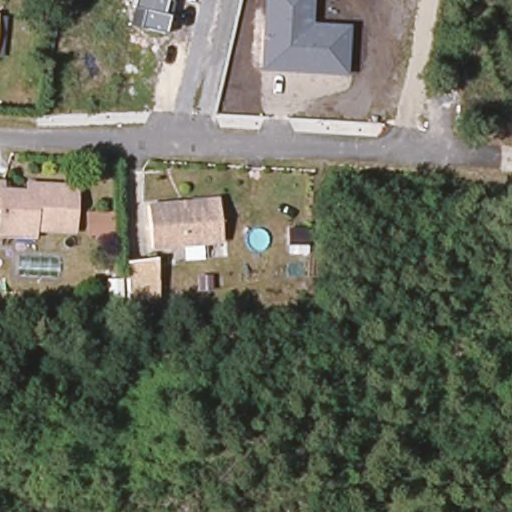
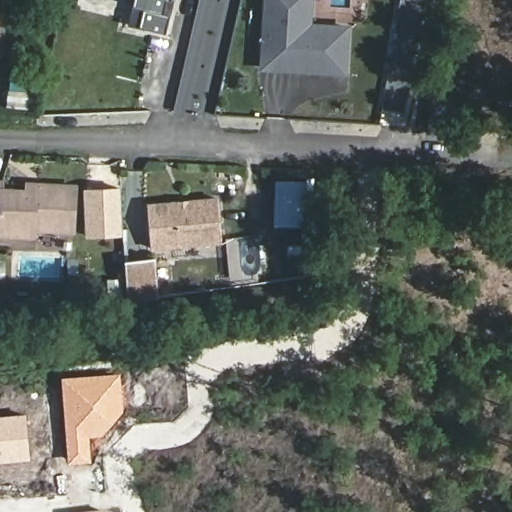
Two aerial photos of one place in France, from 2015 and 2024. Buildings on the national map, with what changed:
unchanged [(130,27),(134,0),(172,0),(164,35),(130,27)]
unchanged [(262,0),(312,0),(312,22),(350,25),(347,77),(257,71),(262,0)]
unchanged [(6,232),(6,214),(0,213),(0,178),(11,178),(9,190),(24,191),(23,177),(34,179),(53,179),(56,226),(35,225),(35,233),(6,232)]
unchanged [(53,179),(77,179),(77,226),(56,226),(53,179)]
unchanged [(214,242),(151,250),(144,210),(207,200),(214,242)]
unchanged [(85,214),(111,214),(112,235),(86,235),(85,214)]
unchanged [(157,261),(157,300),(126,305),(127,261),(157,261)]
new [(121,373),(124,410),(103,436),(90,437),(92,462),(69,464),(62,378),(121,373)]
new [(30,460),(0,463),(0,416),(27,414),(30,460)]
new [(107,511),(107,512),(99,512),(107,511)]

